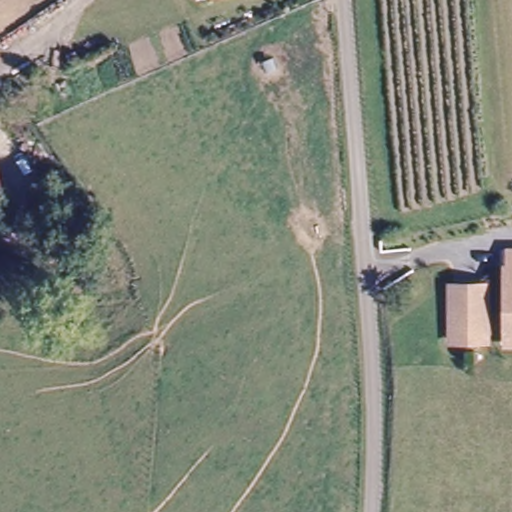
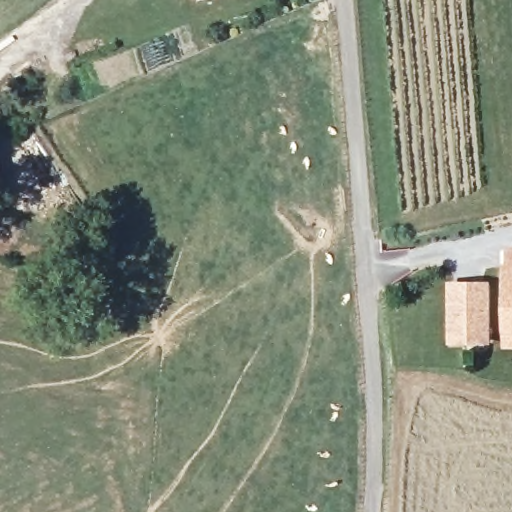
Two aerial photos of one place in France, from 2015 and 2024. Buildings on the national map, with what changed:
unchanged [(3,196),(0,197),(0,182),(3,196)]
unchanged [(501,331),(501,267),(505,267),(505,251),(512,251),(512,346),(501,346),(501,331)]
unchanged [(449,282),(491,282),(491,344),(449,345),(449,282)]

